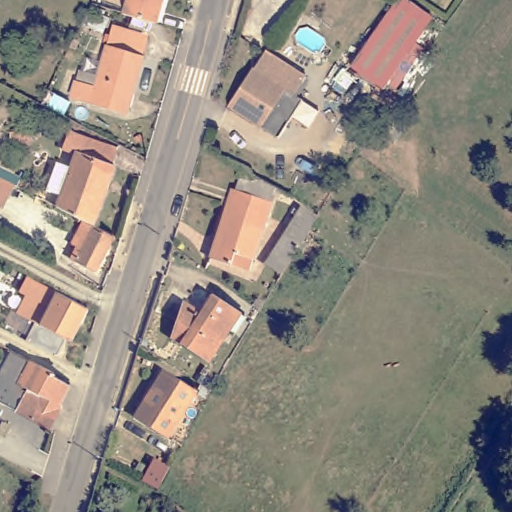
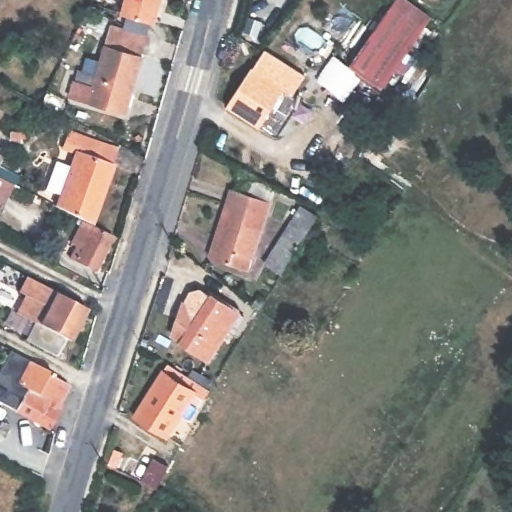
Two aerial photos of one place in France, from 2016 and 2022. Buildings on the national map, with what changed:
unchanged [(121,13),(125,0),(163,0),(157,23),(135,16),(121,13)]
unchanged [(432,34),(420,51),(415,46),(387,86),(355,63),(396,8),(432,34)]
unchanged [(113,17),(105,32),(90,25),(98,9),(113,17)]
unchanged [(79,83),(99,88),(116,27),(150,37),(145,56),(147,58),(131,113),(75,96),(79,83)]
unchanged [(261,131),(228,110),(252,73),(255,75),(266,57),(310,86),(277,136),(274,141),(261,131)]
unchanged [(60,166),(75,172),(80,160),(82,160),(85,154),(69,148),(72,136),(120,151),(122,155),(117,170),(119,171),(99,229),(75,217),(79,206),(65,201),(50,195),(60,166)]
unchanged [(2,174),(25,186),(20,195),(18,194),(6,218),(5,217),(0,227),(0,179),(2,174)]
unchanged [(236,264),(215,257),(234,198),(236,190),(245,193),(249,180),(277,189),(273,203),(277,204),(271,223),(260,258),(255,270),(236,264)]
unchanged [(286,233),(305,204),(323,216),(306,246),(287,275),(267,263),(286,233)]
unchanged [(71,254),(78,258),(80,253),(74,250),(78,239),(81,241),(89,226),(118,241),(96,285),(64,270),(71,254)]
unchanged [(66,343),(56,361),(25,344),(34,328),(17,318),(27,301),(21,297),(29,282),(87,314),(76,335),(70,346),(66,343)]
unchanged [(256,298),(263,303),(258,310),(251,304),(256,298)]
unchanged [(243,318),(214,364),(177,341),(190,309),(206,320),(219,302),(243,318)]
unchanged [(22,390),(36,367),(59,378),(57,383),(74,391),(61,414),(65,416),(55,434),(23,417),(11,410),(22,390)]
unchanged [(167,443),(135,422),(165,377),(195,397),(168,441),(167,443)]
unchanged [(11,426),(5,438),(0,435),(0,423),(1,421),(11,426)]
unchanged [(155,459),(170,466),(157,489),(144,482),(155,459)]

